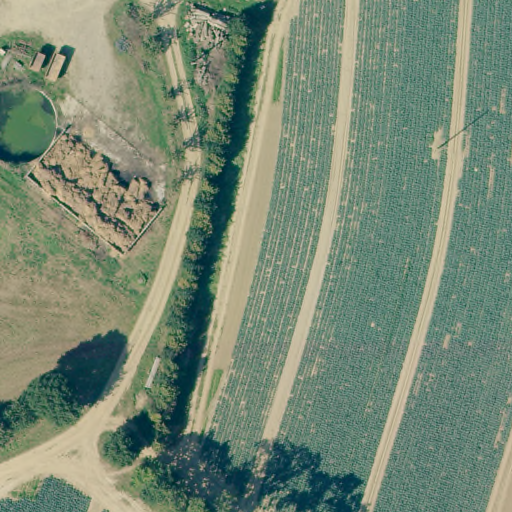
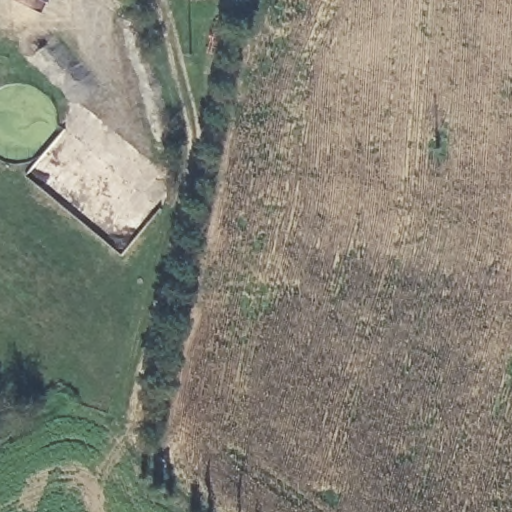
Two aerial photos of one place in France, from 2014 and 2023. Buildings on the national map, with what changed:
[]

